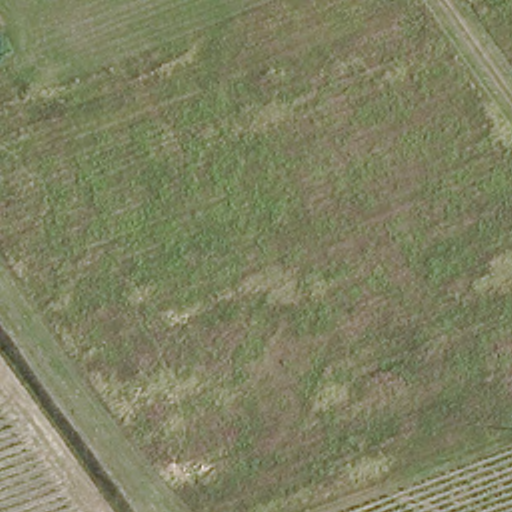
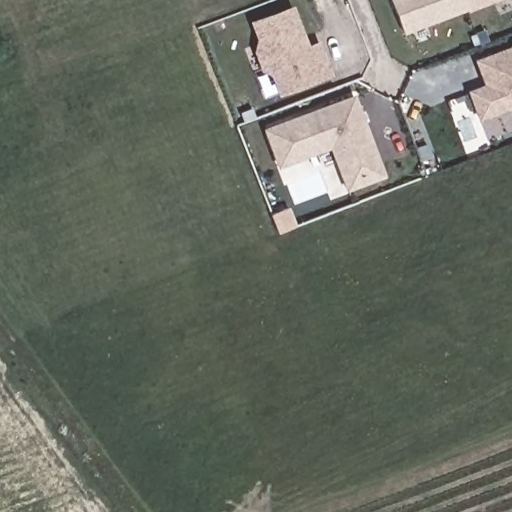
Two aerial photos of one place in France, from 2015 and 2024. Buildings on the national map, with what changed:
new [(469,7),(407,31),(395,0),(466,0),(469,7)]
new [(470,8),(469,7),(466,0),(493,0),(470,8)]
new [(306,36),(310,46),(321,41),(333,71),(284,90),(277,71),(267,64),(261,47),(264,35),(258,19),(295,6),(306,36)]
new [(512,47),(512,106),(499,111),(482,117),(472,91),(488,84),(479,60),(512,47)]
new [(359,95),(365,112),(369,122),(389,174),(352,187),(337,144),(299,158),(285,164),(271,128),(285,123),(359,95)]

